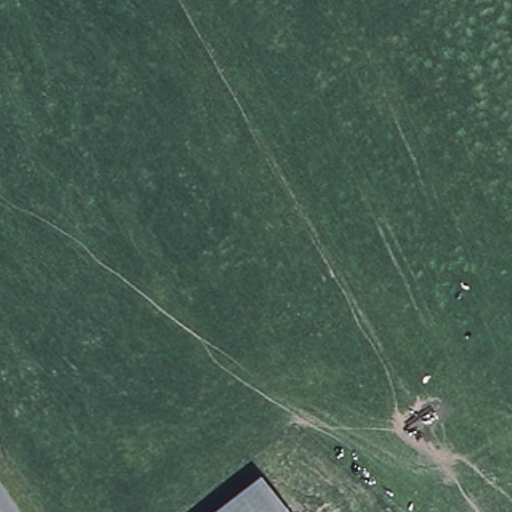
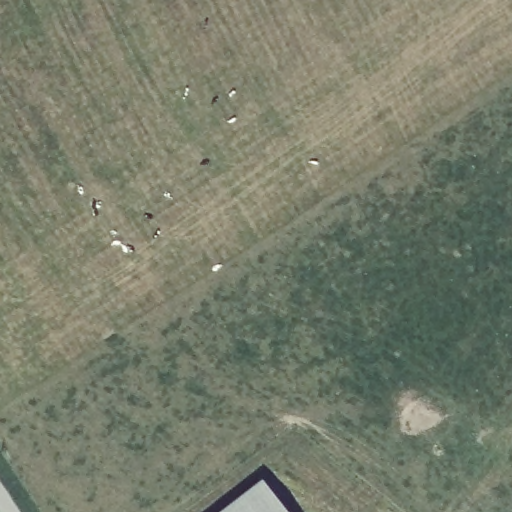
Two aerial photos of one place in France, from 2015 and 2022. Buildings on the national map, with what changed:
unchanged [(287,512),(221,512),(262,480),(287,512)]

